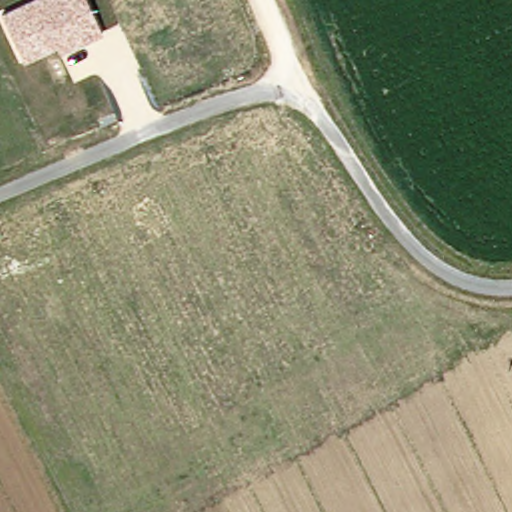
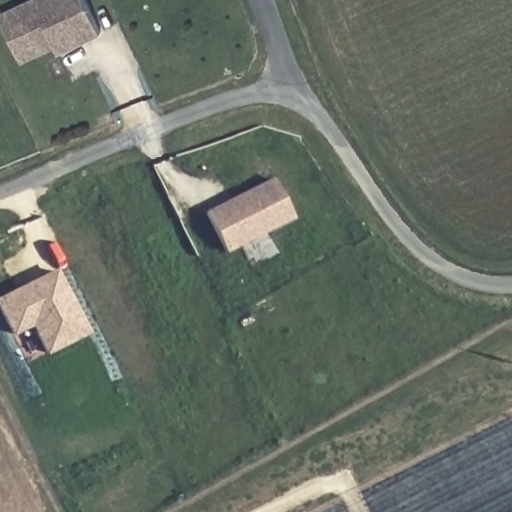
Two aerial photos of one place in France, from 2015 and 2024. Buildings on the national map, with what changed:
unchanged [(2,12),(28,0),(86,0),(100,34),(56,52),(55,46),(24,61),(2,12)]
new [(272,179),(293,221),(226,254),(205,212),(272,179)]
new [(43,357),(28,327),(10,336),(0,317),(0,296),(55,269),(88,334),(43,357)]

